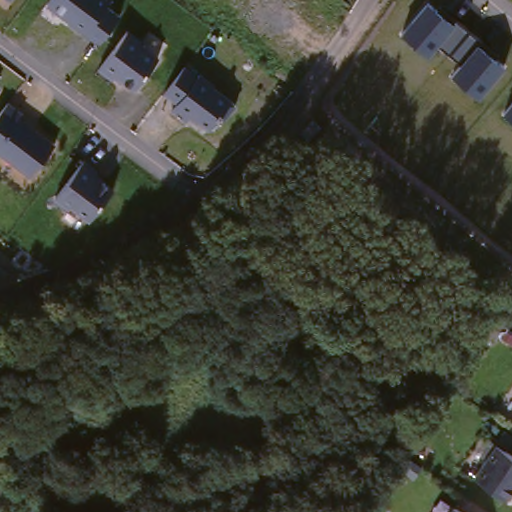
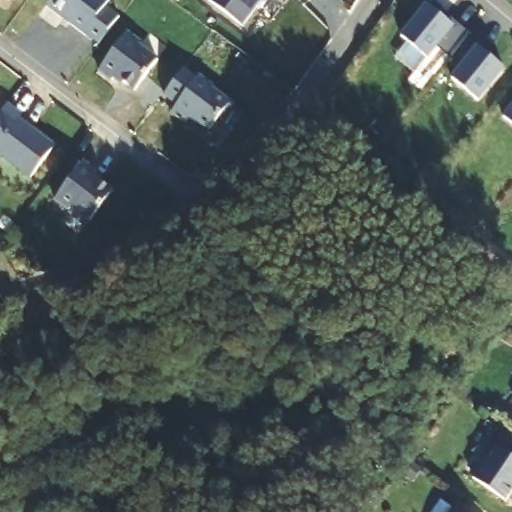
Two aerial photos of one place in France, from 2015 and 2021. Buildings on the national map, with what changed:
unchanged [(98,45),(45,5),(49,0),(106,0),(108,1),(102,10),(116,19),(98,45)]
new [(241,23),(211,0),(258,0),(241,23)]
unchanged [(478,99),(452,76),(459,64),(439,46),(428,57),(401,36),(427,3),(453,25),(457,21),(481,40),(478,45),(507,67),(478,99)]
unchanged [(134,92),(99,69),(125,35),(159,57),(134,92)]
unchanged [(209,137),(171,111),(176,104),(164,95),(184,67),(235,105),(209,137)]
unchanged [(512,104),(512,124),(503,116),(512,104)]
unchanged [(30,176),(0,154),(0,114),(5,107),(54,143),(30,176)]
unchanged [(89,221),(55,199),(81,162),(114,186),(89,221)]
unchanged [(512,457),(512,484),(502,498),(469,475),(492,442),(512,457)]
unchanged [(464,512),(448,512),(453,505),(464,512)]

